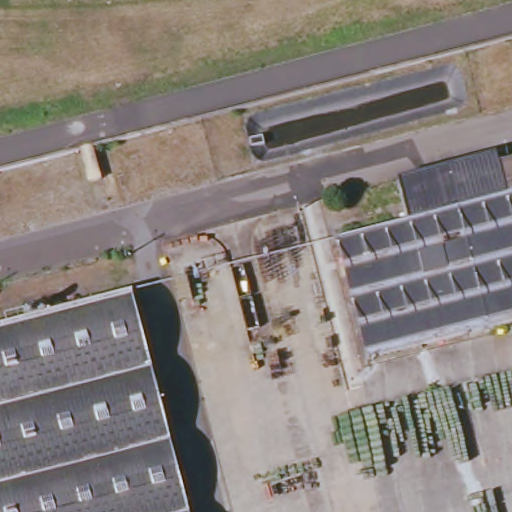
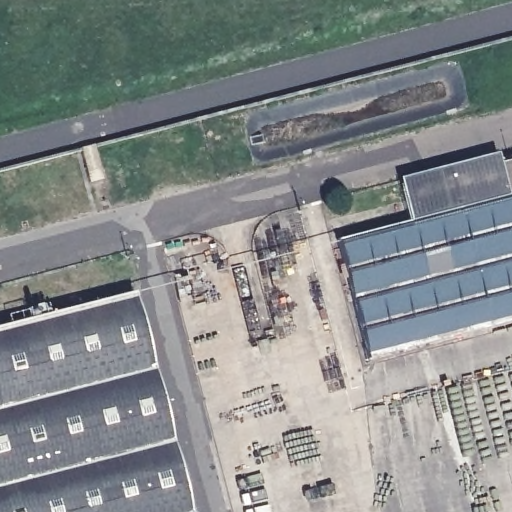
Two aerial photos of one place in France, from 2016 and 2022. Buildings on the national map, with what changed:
unchanged [(337,248),(414,227),(405,192),(512,164),(512,166),(512,314),(365,352),(337,248)]
unchanged [(187,512),(0,512),(0,330),(130,296),(187,512)]

